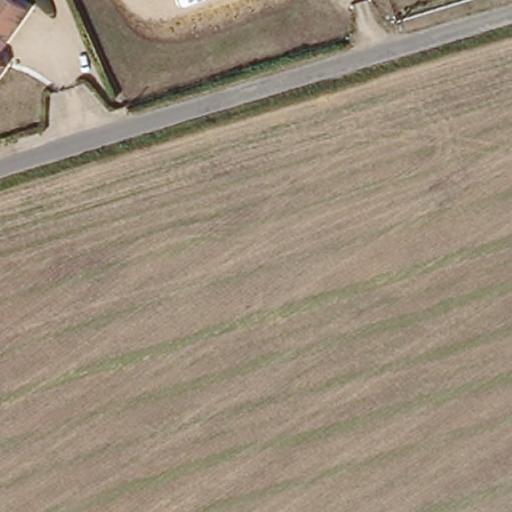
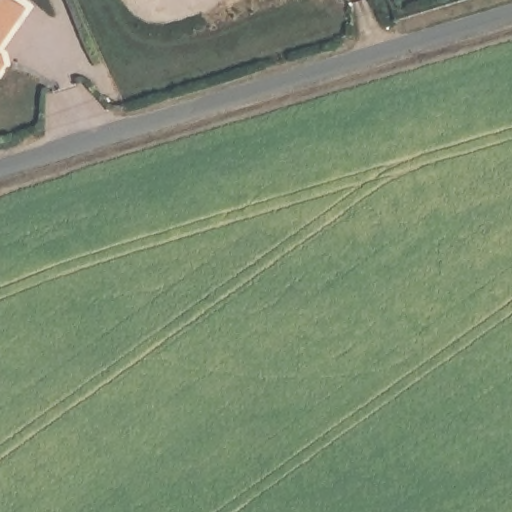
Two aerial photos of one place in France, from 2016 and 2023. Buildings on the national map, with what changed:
unchanged [(4,0),(19,10),(0,40),(0,0),(4,0)]

